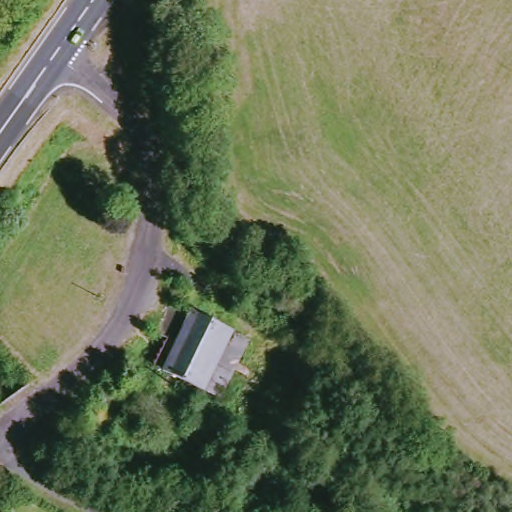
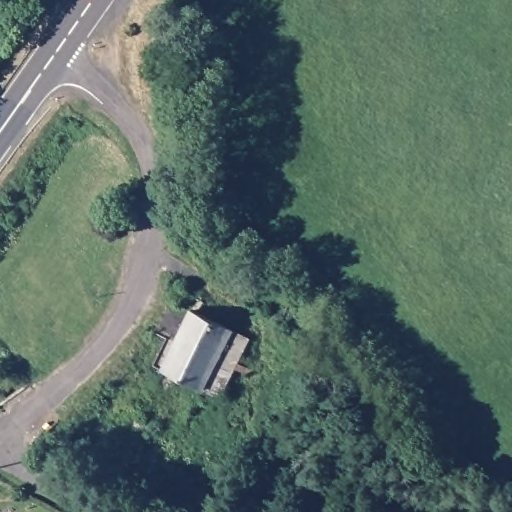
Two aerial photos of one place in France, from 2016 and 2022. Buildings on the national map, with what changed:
unchanged [(191,298),(210,314),(201,330),(212,338),(217,330),(241,346),(209,401),(163,369),(188,319),(179,312),(191,298)]

